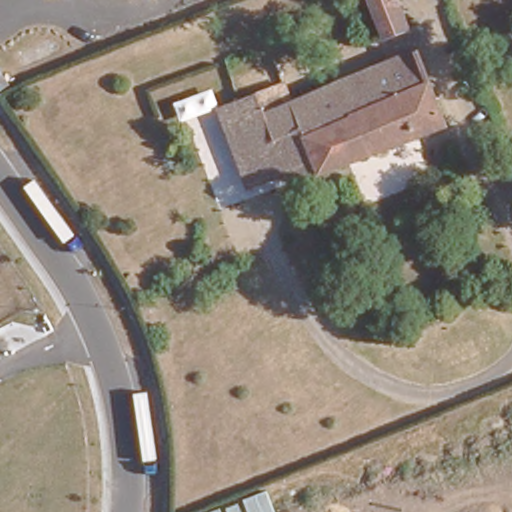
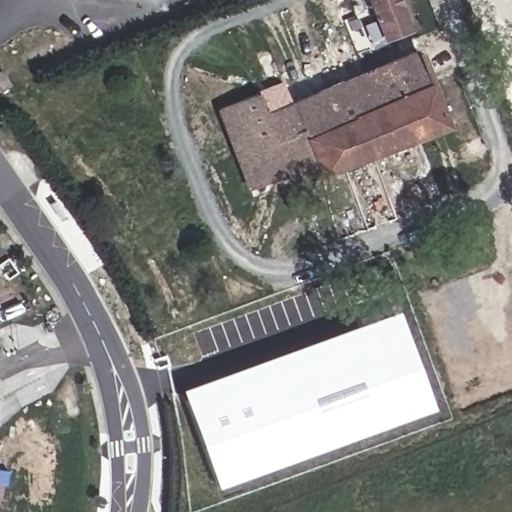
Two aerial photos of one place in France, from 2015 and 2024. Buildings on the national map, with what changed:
unchanged [(386,34),(373,0),(397,0),(407,26),(386,34)]
unchanged [(257,94),(286,81),(293,100),(416,52),(444,122),(290,183),(285,174),(249,188),(219,109),(253,95),(257,94)]
unchanged [(216,109),(180,123),(173,104),(209,91),(216,109)]
new [(215,487),(179,388),(396,309),(432,408),(215,487)]

